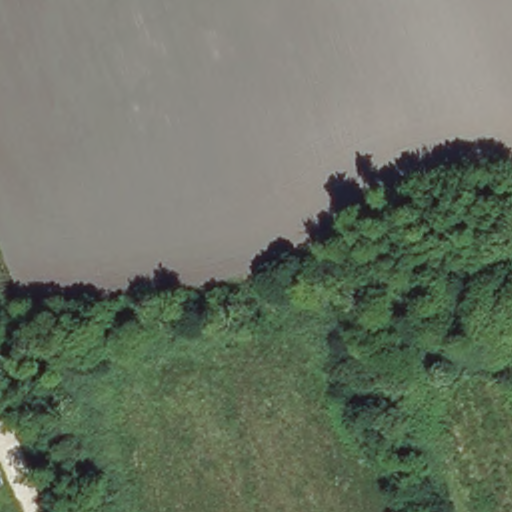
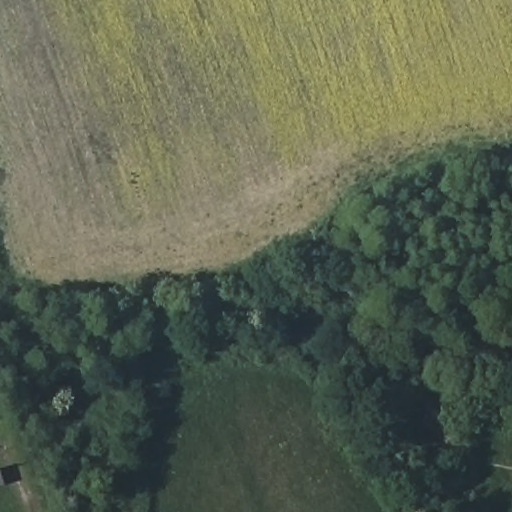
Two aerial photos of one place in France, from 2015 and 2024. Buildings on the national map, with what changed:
unchanged [(2,482),(0,483),(0,477),(2,482)]

